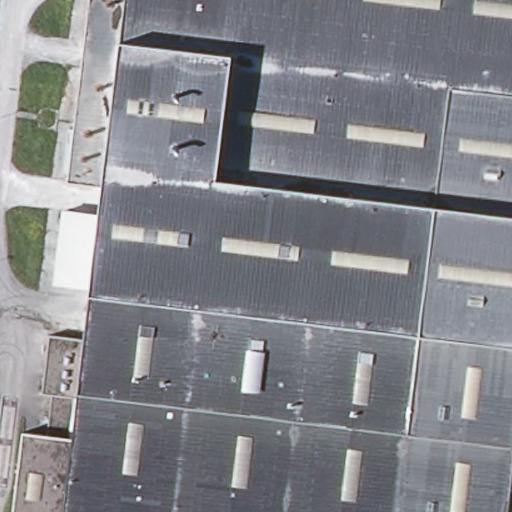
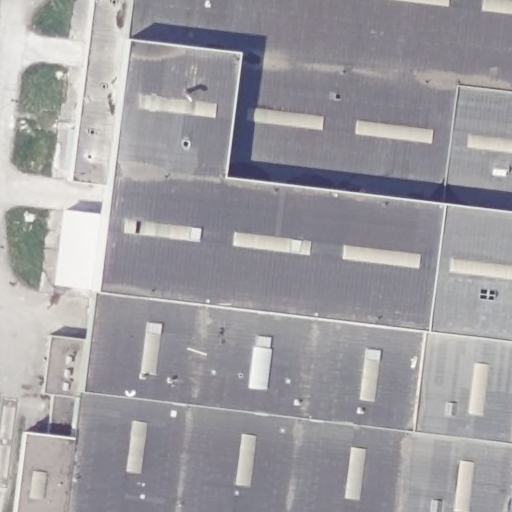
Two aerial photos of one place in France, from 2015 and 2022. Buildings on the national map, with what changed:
unchanged [(507,512),(11,512),(22,428),(49,431),(52,392),(37,388),(46,335),(83,336),(87,286),(93,185),(63,184),(84,0),(512,0),(512,467),(507,512)]

